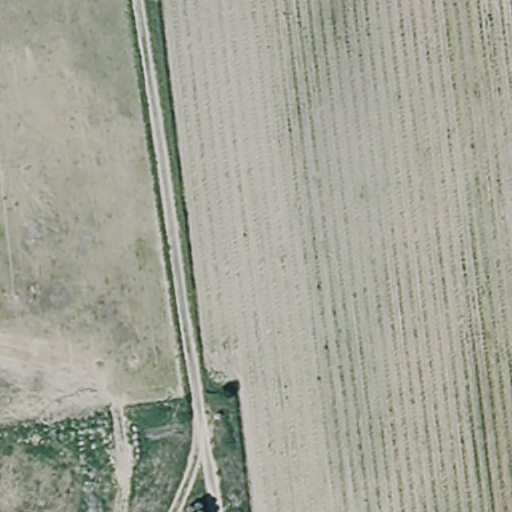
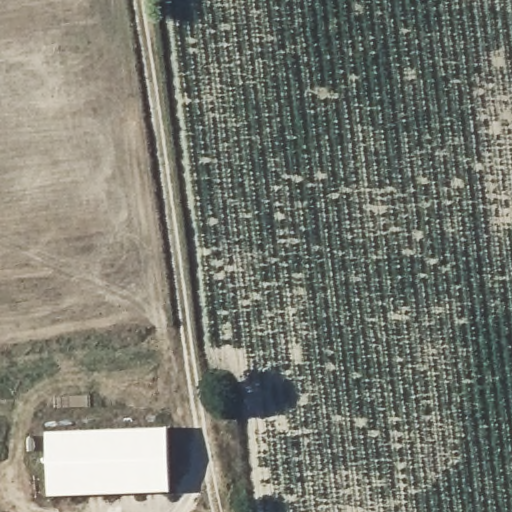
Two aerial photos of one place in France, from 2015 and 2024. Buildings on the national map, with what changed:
new [(169,428),(172,493),(50,498),(47,433),(169,428)]

